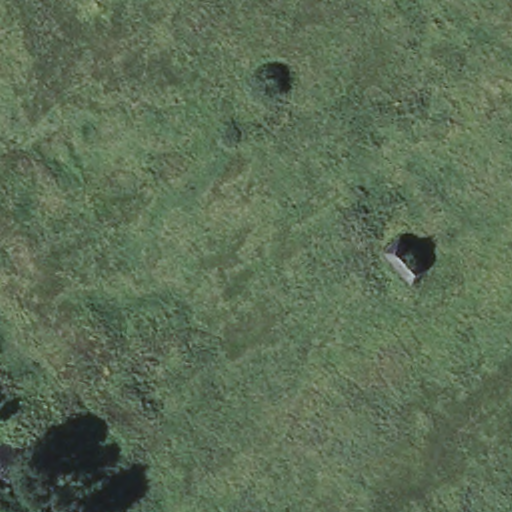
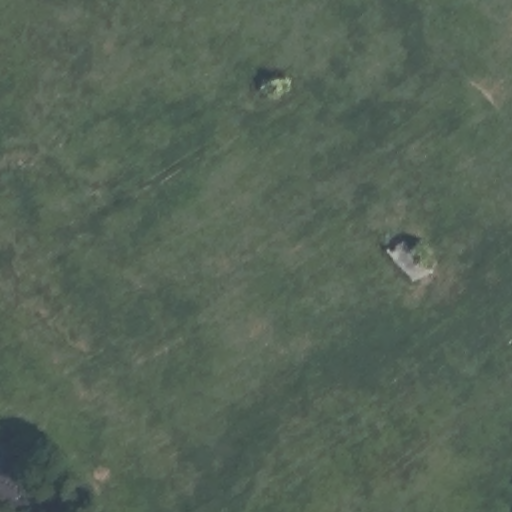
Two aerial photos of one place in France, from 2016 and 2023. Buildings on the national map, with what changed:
unchanged [(428,258),(413,271),(387,241),(401,228),(428,258)]

